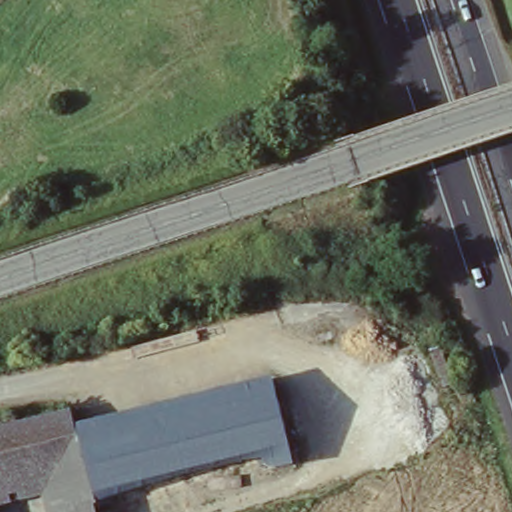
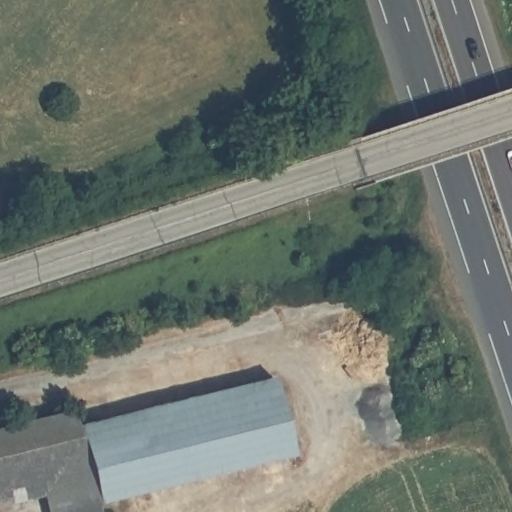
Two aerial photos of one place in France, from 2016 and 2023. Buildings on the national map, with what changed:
unchanged [(126,512),(94,512),(88,481),(77,422),(276,380),(293,470),(274,480),(126,512)]
unchanged [(77,422),(88,481),(41,490),(0,498),(0,423),(75,410),(77,422)]
unchanged [(41,490),(88,481),(94,512),(46,512),(41,490)]

